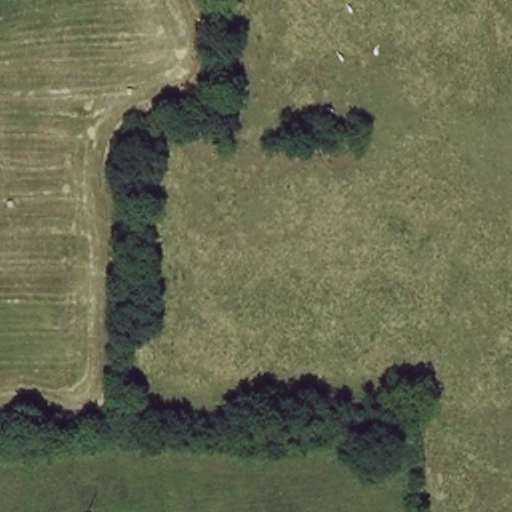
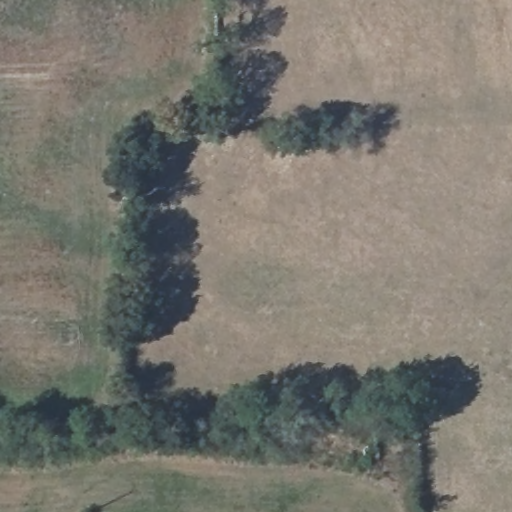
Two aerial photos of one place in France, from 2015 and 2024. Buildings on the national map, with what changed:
[]

